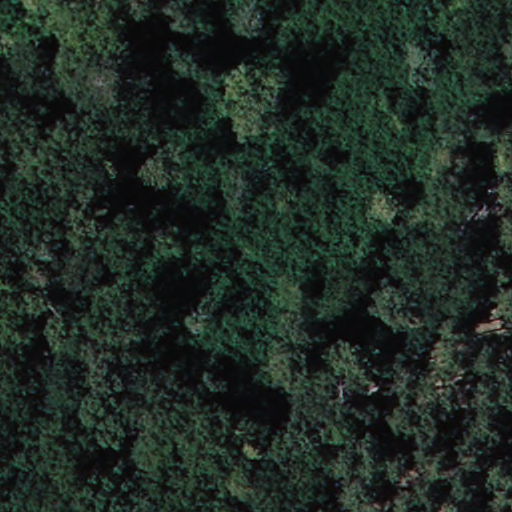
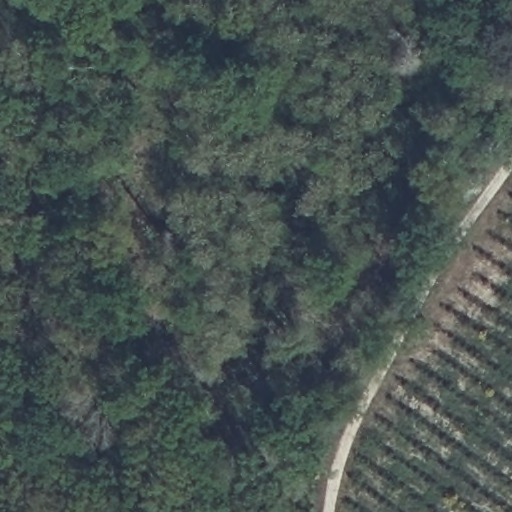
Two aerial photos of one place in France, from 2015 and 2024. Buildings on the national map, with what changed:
[]

